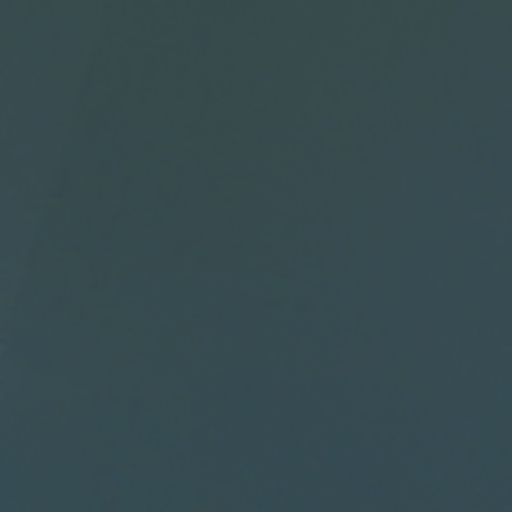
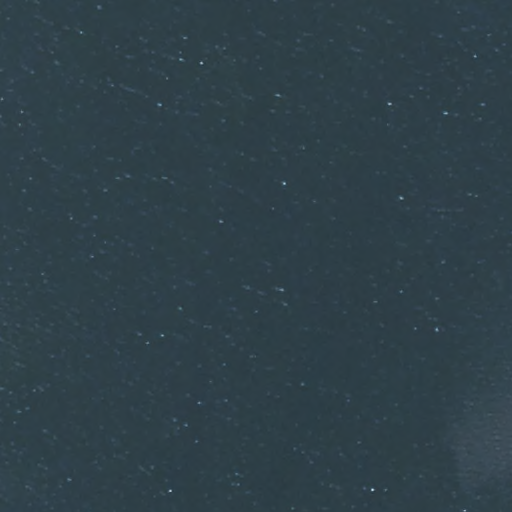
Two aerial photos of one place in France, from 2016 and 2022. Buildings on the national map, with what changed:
[]

